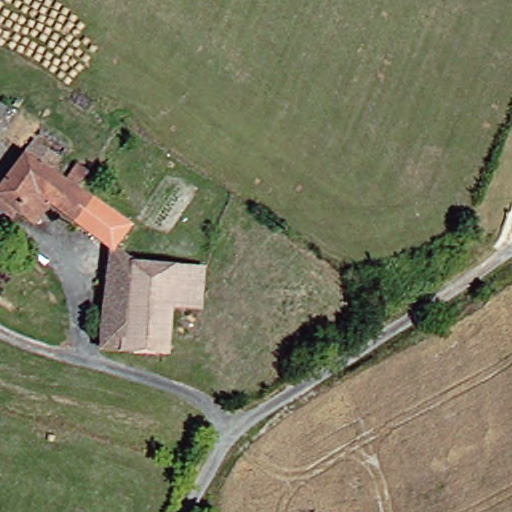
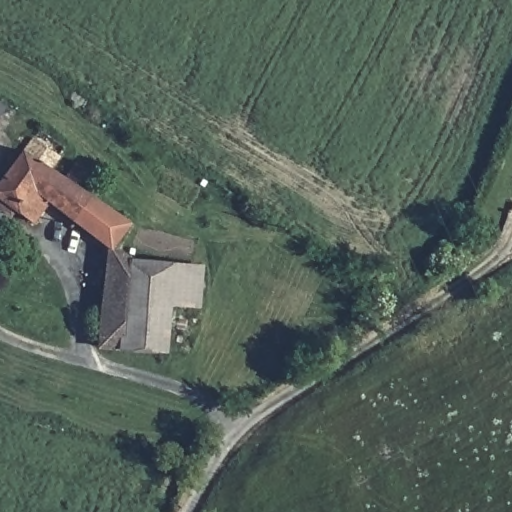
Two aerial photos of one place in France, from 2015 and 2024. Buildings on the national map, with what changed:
unchanged [(21,226),(0,210),(0,169),(18,140),(47,158),(40,171),(52,180),(62,162),(76,169),(66,186),(122,223),(105,249),(35,205),(21,226)]
unchanged [(130,265),(195,270),(192,305),(160,304),(156,357),(88,347),(105,249),(130,265)]

